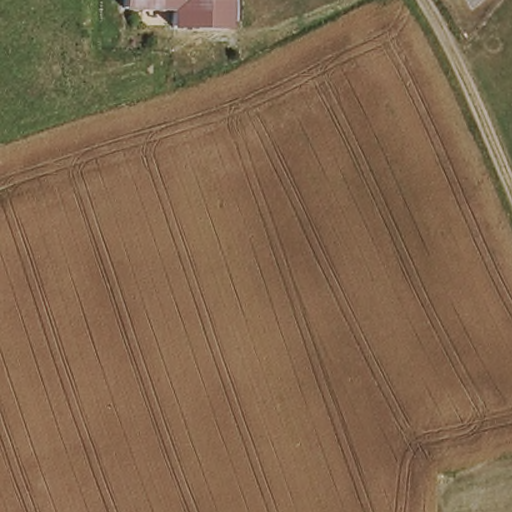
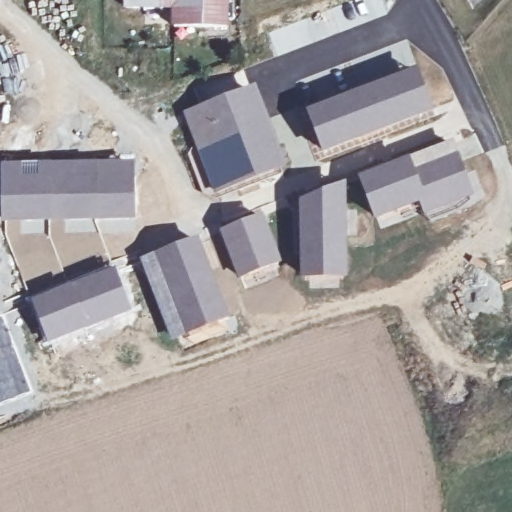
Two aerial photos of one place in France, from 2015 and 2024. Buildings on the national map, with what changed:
unchanged [(227,28),(177,27),(177,9),(165,9),(165,16),(148,15),(148,6),(131,6),(131,0),(228,0),(227,28)]
new [(370,85),(417,68),(433,110),(388,129),(322,152),(305,110),(370,85)]
new [(214,193),(182,113),(249,87),(281,168),(214,193)]
new [(421,198),(376,217),(361,180),(408,163),(455,144),(473,192),(425,211),(421,198)]
new [(135,158),(135,222),(95,225),(97,233),(50,235),(47,224),(3,223),(1,223),(0,182),(0,162),(108,160),(135,158)]
new [(345,181),(348,278),(300,280),(298,200),(345,181)]
new [(242,278),(224,232),(262,217),(280,263),(242,278)]
new [(47,224),(50,235),(64,271),(52,276),(52,274),(24,283),(7,239),(3,223),(47,224)]
new [(199,236),(230,318),(233,317),(238,329),(227,333),(222,321),(170,341),(138,258),(199,236)]
new [(116,265),(134,312),(47,346),(29,297),(116,265)]
new [(35,393),(6,406),(8,411),(0,414),(0,314),(2,313),(35,393)]

